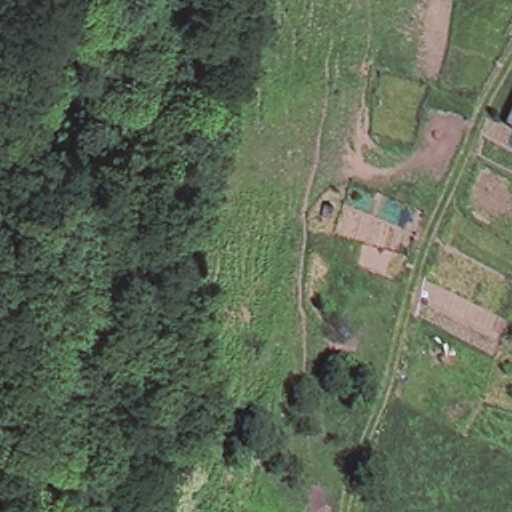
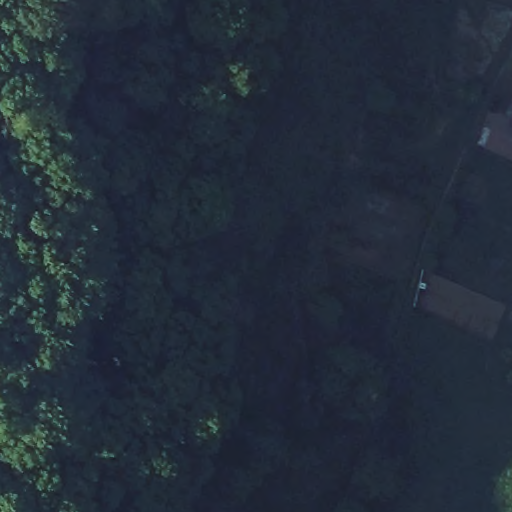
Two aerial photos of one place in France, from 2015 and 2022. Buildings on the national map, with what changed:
unchanged [(512,95),(512,118),(503,114),(512,95)]
unchanged [(465,397),(462,413),(437,405),(443,389),(465,397)]

